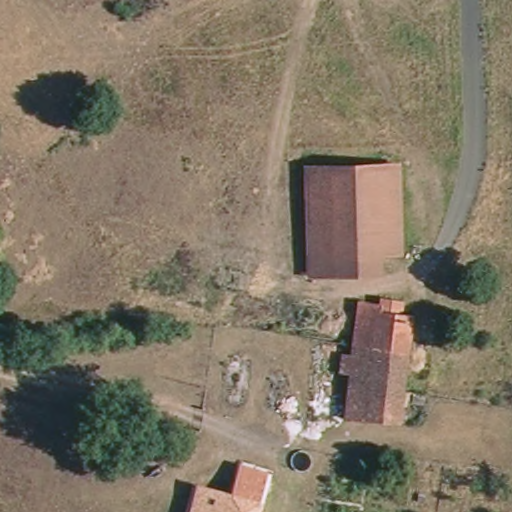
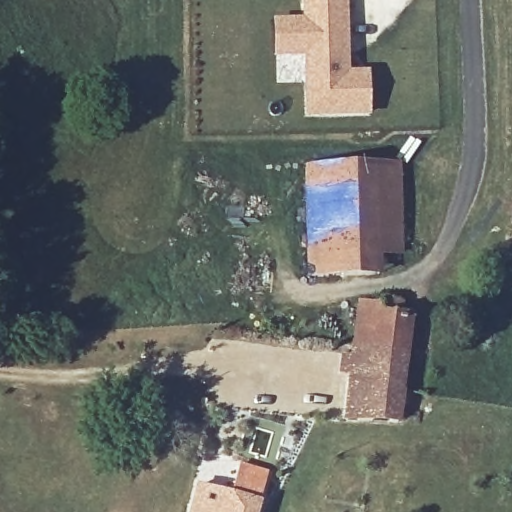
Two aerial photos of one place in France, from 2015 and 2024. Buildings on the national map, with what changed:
new [(369,69),(370,115),(306,117),(304,56),(273,58),(272,18),(302,17),(302,0),(348,0),(349,70),(369,69)]
unchanged [(302,168),(392,165),(394,253),(375,254),(304,256),(302,168)]
unchanged [(375,254),(376,275),(305,278),(304,256),(375,254)]
unchanged [(357,298),(376,302),(377,309),(392,312),(407,314),(402,350),(348,341),(357,298)]
unchanged [(402,350),(395,387),(391,418),(338,413),(343,372),(313,368),(318,347),(347,351),(348,341),(402,350)]
unchanged [(224,488),(232,461),(263,470),(251,512),(182,512),(192,478),(224,488)]

